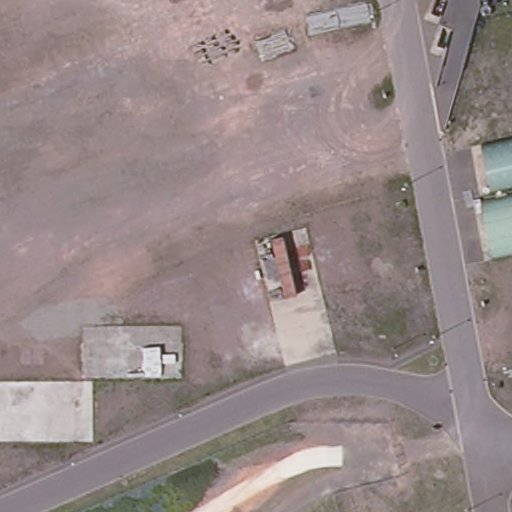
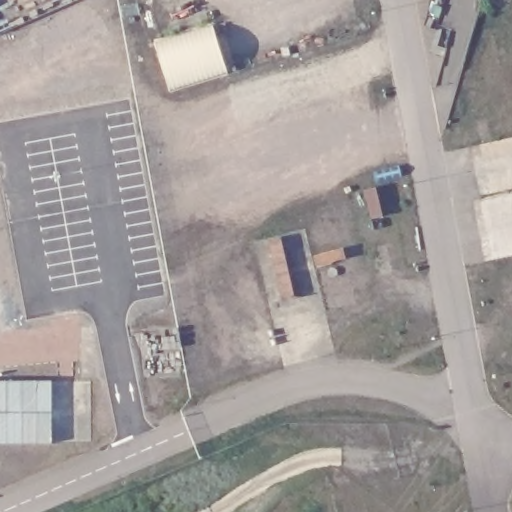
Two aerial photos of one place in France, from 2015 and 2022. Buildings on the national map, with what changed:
new [(217,26),(230,76),(174,91),(158,45),(217,26)]
unchanged [(495,200),(485,146),(512,139),(512,255),(494,260),(482,203),(495,200)]

